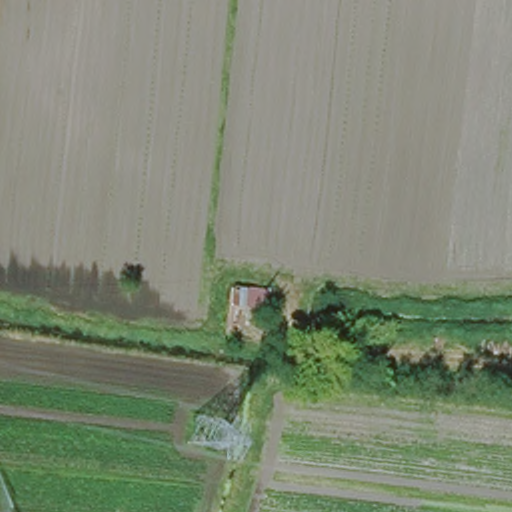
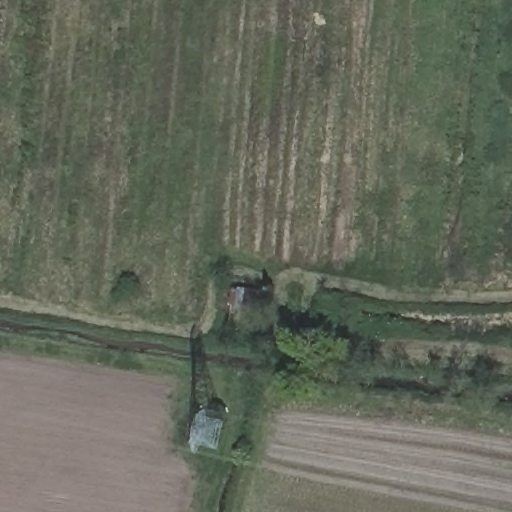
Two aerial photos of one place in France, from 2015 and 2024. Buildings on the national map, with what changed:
[]

